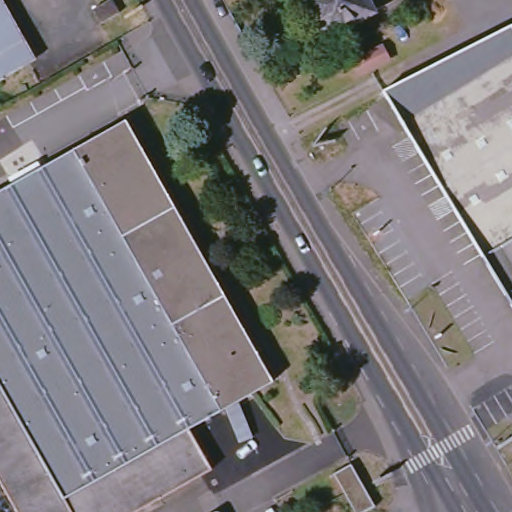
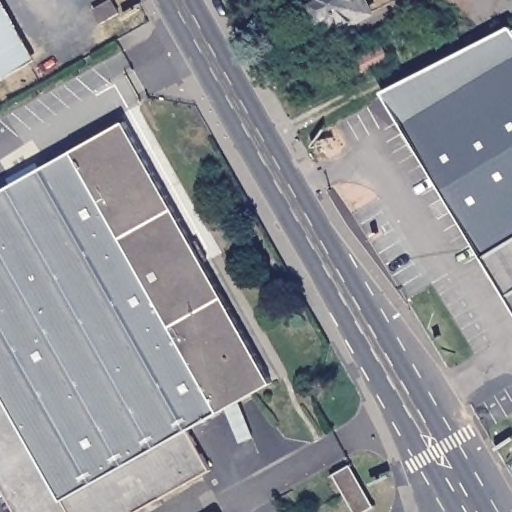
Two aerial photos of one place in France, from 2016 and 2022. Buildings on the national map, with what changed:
unchanged [(107,0),(113,0),(119,12),(100,22),(93,9),(107,0)]
unchanged [(367,0),(373,11),(331,33),(314,0),(367,0)]
unchanged [(0,80),(0,1),(34,60),(0,80)]
unchanged [(402,125),(385,93),(512,29),(512,57),(402,125)]
unchanged [(381,41),(391,60),(358,76),(349,57),(381,41)]
unchanged [(482,256),(402,125),(512,57),(512,237),(482,256)]
unchanged [(0,482),(0,191),(124,121),(271,381),(188,430),(210,468),(133,512),(17,512),(0,482)]
unchanged [(512,237),(512,306),(482,256),(512,237)]
unchanged [(368,512),(357,512),(346,492),(334,473),(351,465),(362,483),(376,507),(368,512)]

